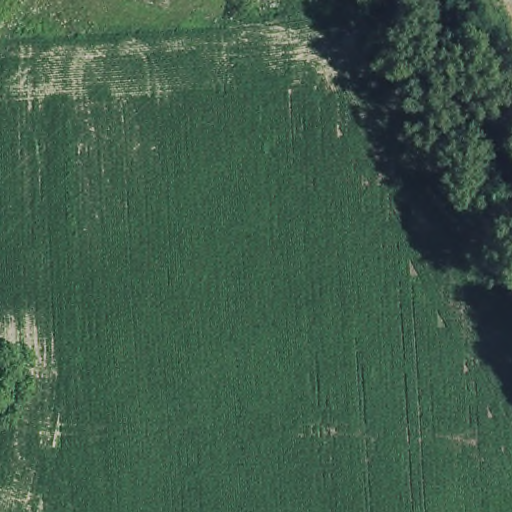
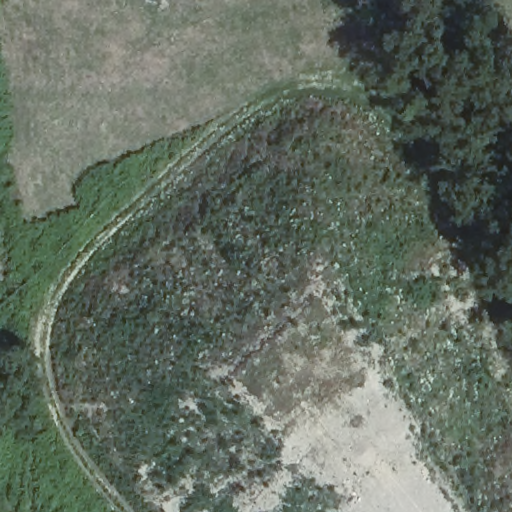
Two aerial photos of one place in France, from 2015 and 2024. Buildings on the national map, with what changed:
[]

